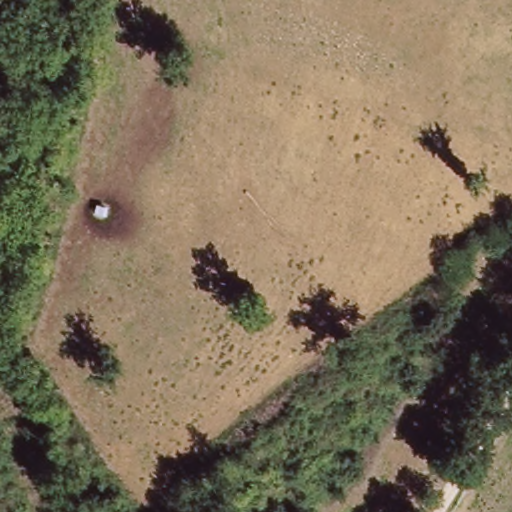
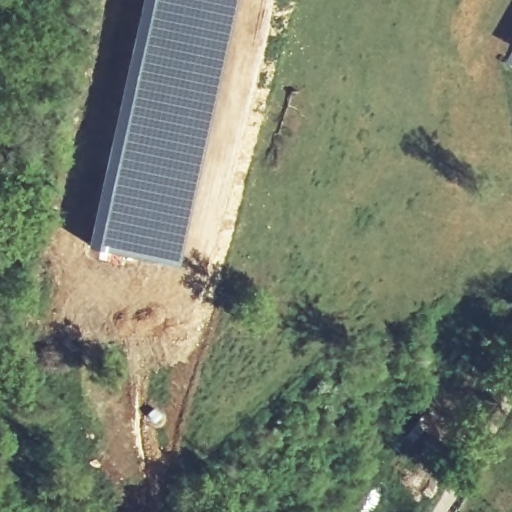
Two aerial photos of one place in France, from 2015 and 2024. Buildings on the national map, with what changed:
new [(141,0),(237,0),(178,264),(86,244),(141,0)]
new [(512,46),(512,54),(509,52),(512,46)]
unchanged [(341,512),(347,502),(358,509),(356,512),(341,512)]

